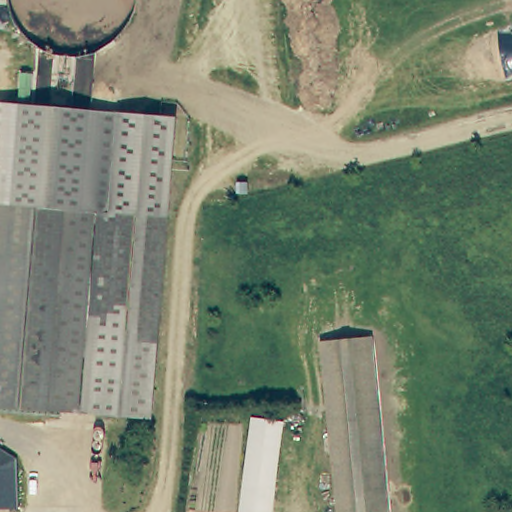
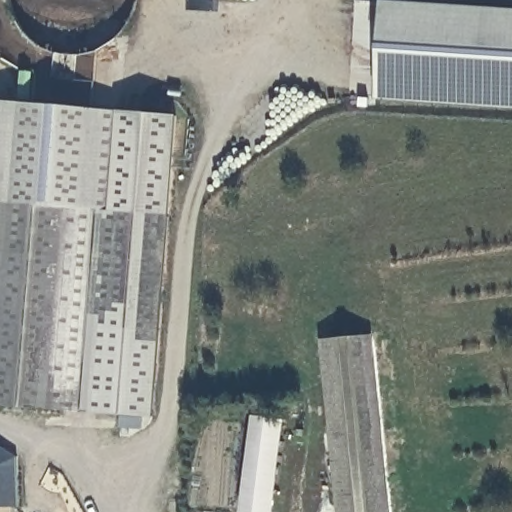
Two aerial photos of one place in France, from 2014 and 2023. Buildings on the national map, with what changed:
new [(512,9),(512,108),(375,100),(382,1),(512,9)]
unchanged [(16,98),(6,199),(0,198),(0,97),(16,98)]
unchanged [(2,250),(6,199),(16,98),(118,105),(109,208),(161,213),(155,290),(147,410),(108,407),(66,404),(0,399),(0,277),(2,250)]
unchanged [(131,106),(169,109),(161,213),(109,208),(118,105),(131,106)]
unchanged [(6,199),(2,250),(0,277),(0,198),(6,199)]
unchanged [(367,334),(385,512),(338,512),(321,338),(367,334)]
unchanged [(271,512),(241,512),(252,415),(282,419),(271,512)]
unchanged [(7,506),(7,511),(0,511),(0,447),(7,447),(14,447),(29,457),(29,467),(30,506),(7,506)]

